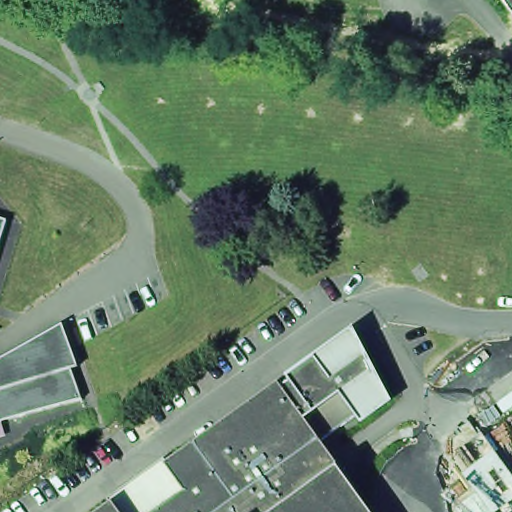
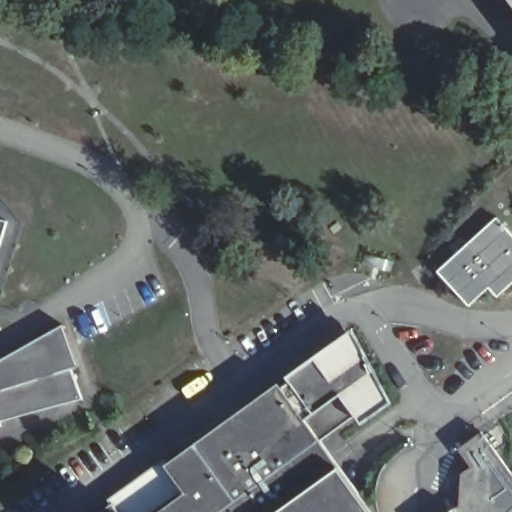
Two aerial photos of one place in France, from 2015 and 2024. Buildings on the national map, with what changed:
new [(496,216),(512,234),(512,283),(496,297),(488,289),(468,306),(435,270),(496,216)]
unchanged [(0,249),(0,218),(9,221),(0,249)]
unchanged [(79,366),(72,368),(83,399),(1,421),(0,422),(0,360),(64,324),(79,366)]
unchanged [(356,415),(377,400),(345,341),(290,380),(287,375),(352,329),(390,401),(361,422),(357,415),(356,415)]
unchanged [(290,380),(345,341),(377,400),(356,415),(357,415),(320,440),(282,386),(290,380)]
unchanged [(167,464),(169,464),(280,383),(282,386),(320,440),(373,512),(160,512),(187,492),(167,464)]
unchanged [(113,504),(110,499),(165,459),(169,464),(167,464),(187,492),(160,512),(120,512),(114,503),(113,504)]
unchanged [(114,503),(120,512),(102,512),(113,504),(114,503)]

